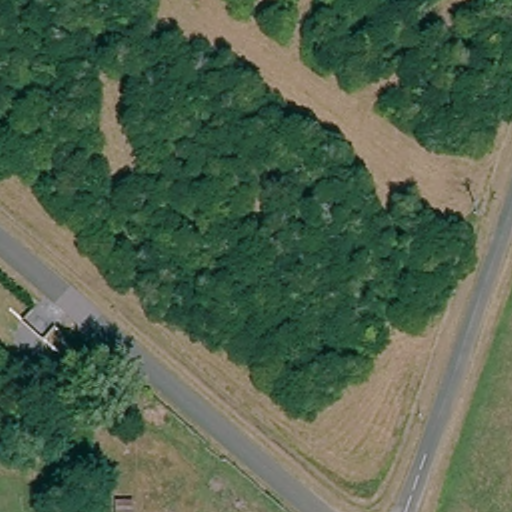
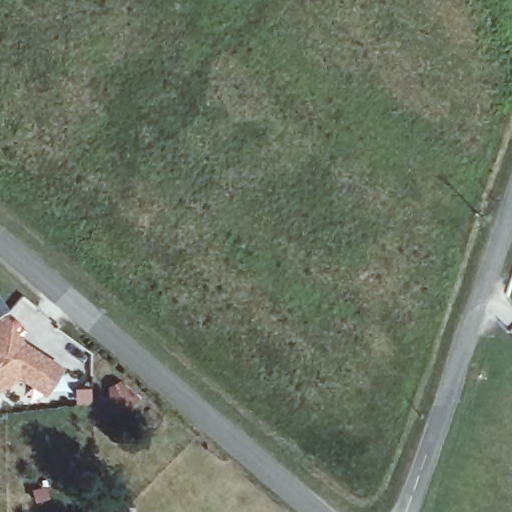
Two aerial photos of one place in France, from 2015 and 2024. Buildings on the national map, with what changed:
new [(62,366),(45,396),(18,379),(0,390),(0,315),(4,312),(23,341),(62,366)]
unchanged [(143,506),(143,512),(125,512),(125,506),(143,506)]

